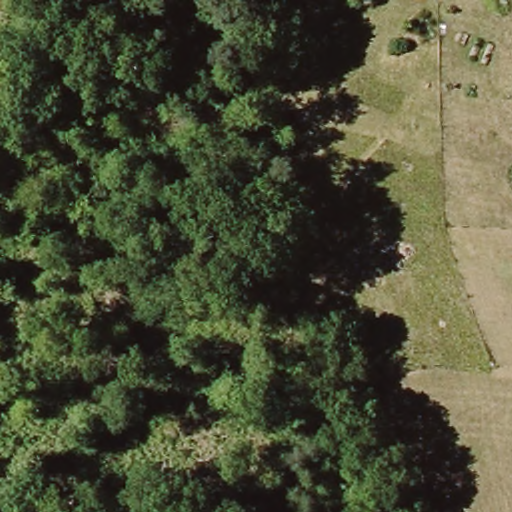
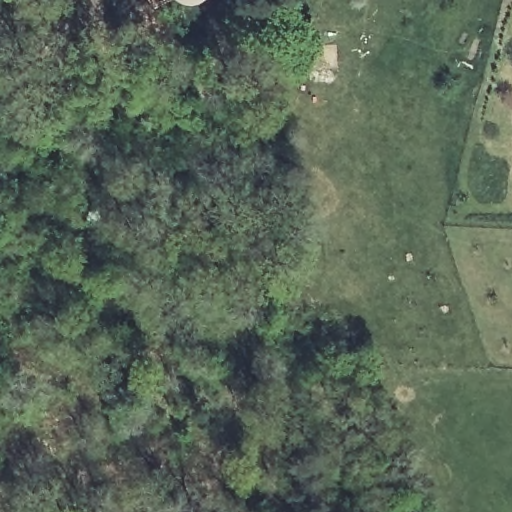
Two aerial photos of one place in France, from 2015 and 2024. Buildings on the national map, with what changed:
new [(189,6),(180,4),(173,0),(204,0),(198,4),(189,6)]

